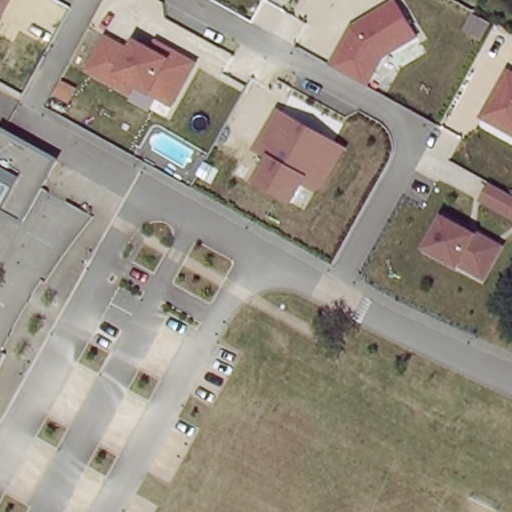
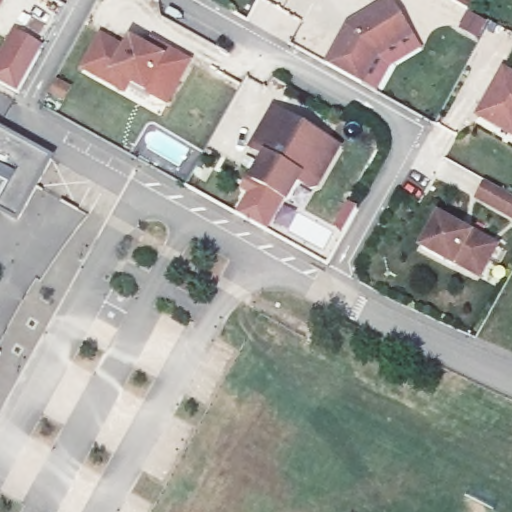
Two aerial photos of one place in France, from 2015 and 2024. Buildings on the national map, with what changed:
unchanged [(0,15),(0,0),(7,0),(0,15)]
unchanged [(417,37),(380,59),(368,84),(326,62),(345,25),(385,0),(394,0),(417,37)]
new [(0,82),(0,53),(14,29),(44,45),(18,92),(0,82)]
unchanged [(126,46),(132,36),(148,45),(151,38),(193,61),(171,105),(132,86),(127,97),(80,72),(100,32),(126,46)]
unchanged [(512,72),(512,137),(477,117),(505,68),(512,72)]
unchanged [(345,147),(318,194),(303,185),(293,205),(251,182),(265,157),(250,150),(272,107),(345,147)]
unchanged [(53,156),(17,228),(4,222),(0,230),(0,130),(53,156)]
unchanged [(487,179),(512,192),(512,219),(477,201),(487,179)]
unchanged [(480,279),(418,249),(437,213),(497,244),(480,279)]

